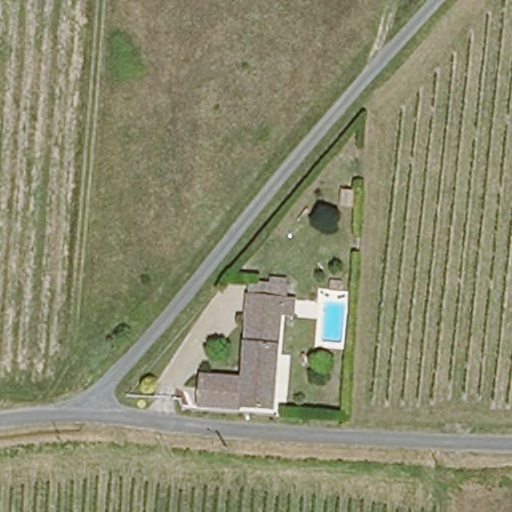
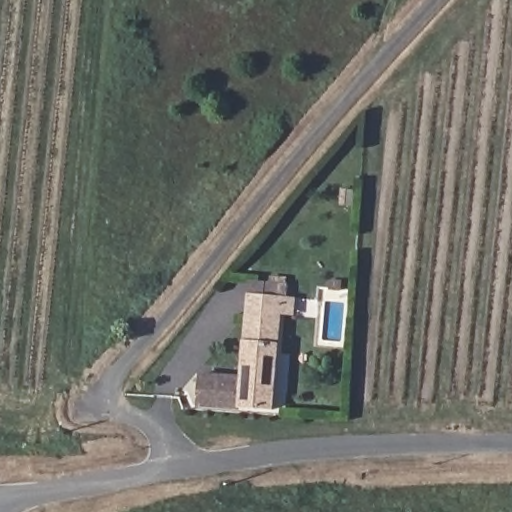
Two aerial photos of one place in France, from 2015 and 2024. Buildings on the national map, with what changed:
unchanged [(242,404),(245,375),(253,315),(255,298),(256,293),(286,295),(298,297),(297,301),(297,310),(285,310),(284,318),(274,407),(242,404)]
unchanged [(199,400),(202,370),(245,375),(242,404),(199,400)]

